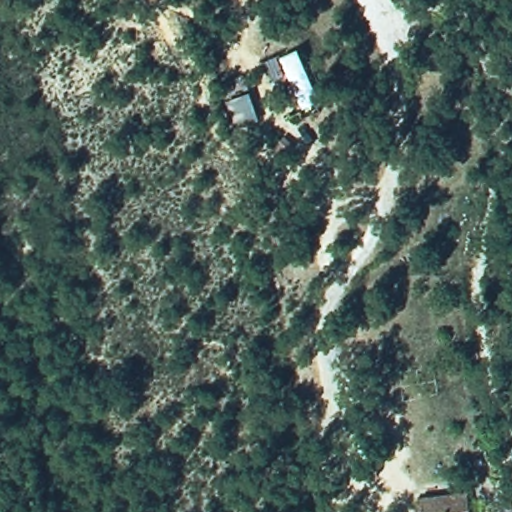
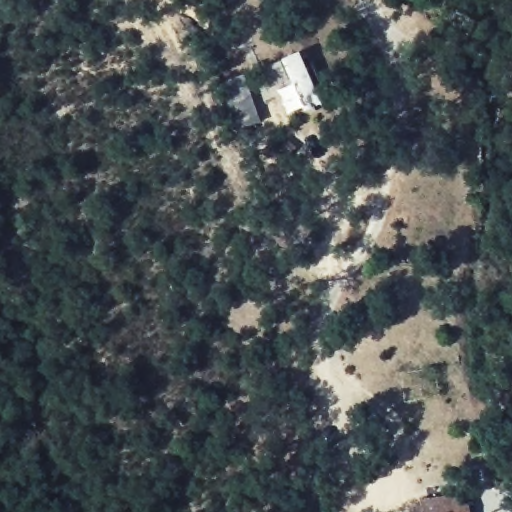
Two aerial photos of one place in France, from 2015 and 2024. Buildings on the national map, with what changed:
unchanged [(450,496),(466,492),(470,512),(420,512),(418,502),(440,497),(450,496)]

